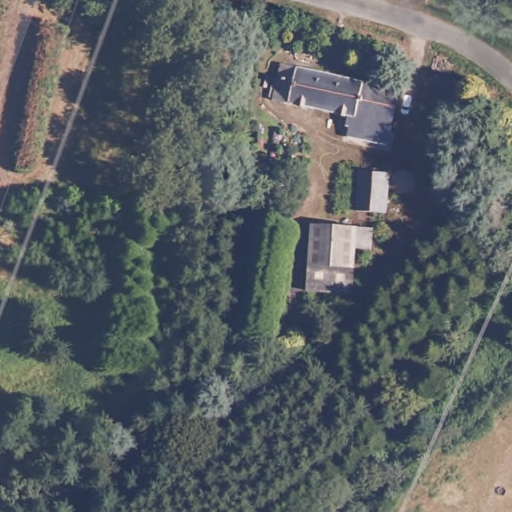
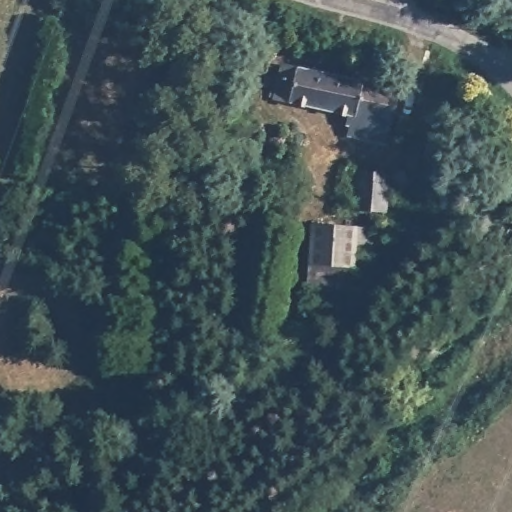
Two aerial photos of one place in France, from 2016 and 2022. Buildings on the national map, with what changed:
unchanged [(395,89),(382,144),(344,135),(349,116),(269,97),(275,72),(277,63),(292,67),(347,78),(395,89)]
unchanged [(387,212),(357,210),(360,170),(390,172),(387,212)]
unchanged [(188,194),(192,173),(202,175),(201,185),(211,188),(209,198),(188,194)]
unchanged [(307,289),(314,223),(359,227),(374,228),(371,254),(357,253),(355,268),(353,293),(307,289)]

